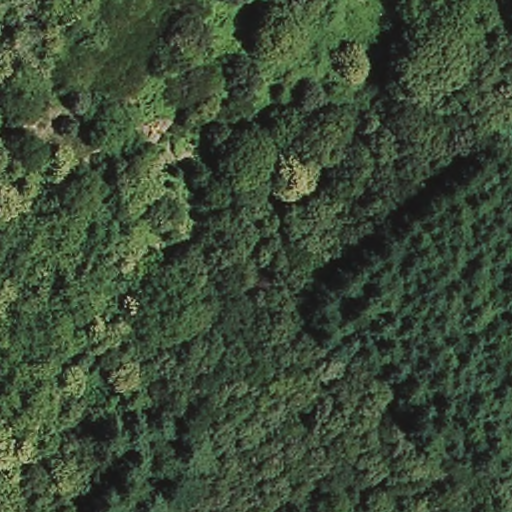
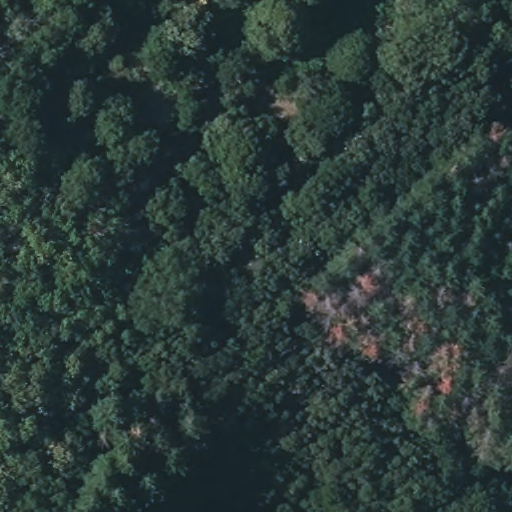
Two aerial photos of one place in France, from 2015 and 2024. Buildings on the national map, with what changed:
unchanged [(0,126),(0,123),(7,105),(25,112),(17,133),(0,126)]
unchanged [(325,392),(307,381),(319,363),(335,375),(325,392)]

